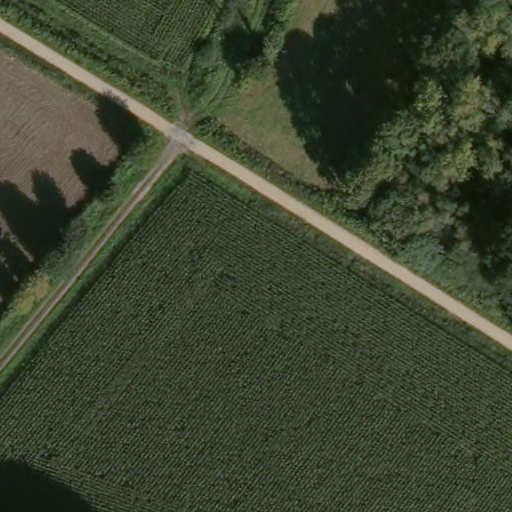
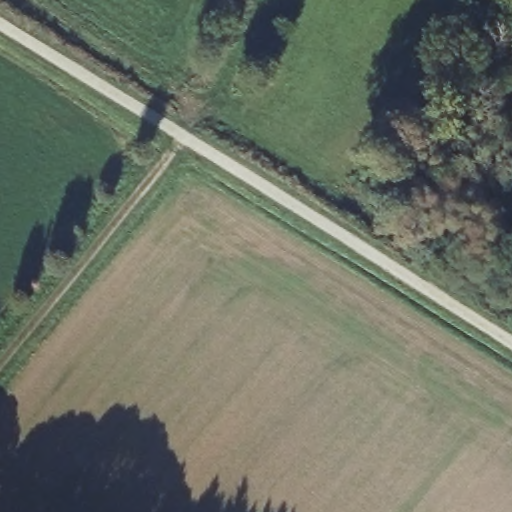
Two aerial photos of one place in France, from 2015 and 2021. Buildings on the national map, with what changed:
[]

